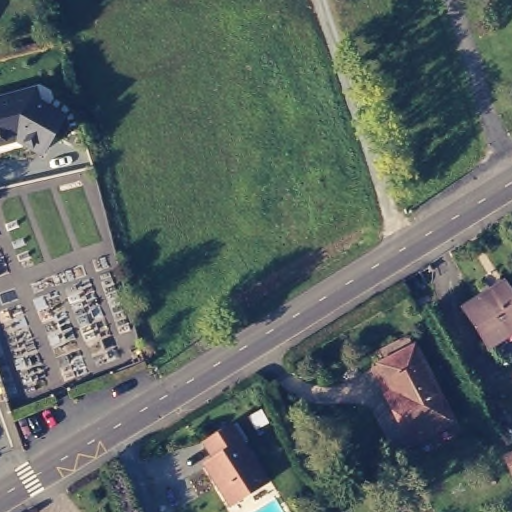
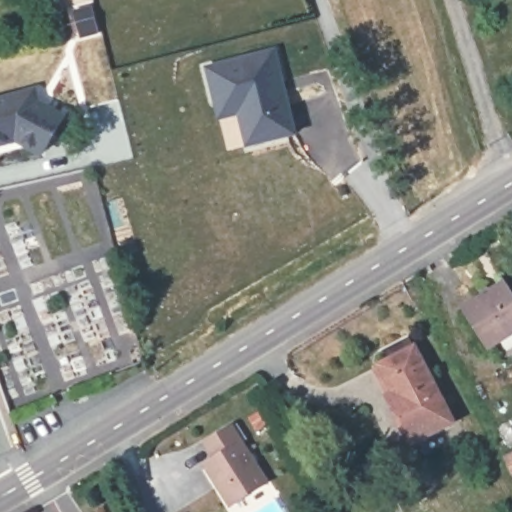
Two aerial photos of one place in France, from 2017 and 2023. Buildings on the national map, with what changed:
new [(246,149),(237,115),(218,120),(204,67),(276,49),(298,136),(246,149)]
unchanged [(62,123),(42,158),(17,144),(0,149),(0,107),(34,97),(38,109),(62,123)]
unchanged [(484,298),(481,292),(494,283),(493,280),(501,275),(512,291),(512,361),(510,362),(498,343),(494,346),(469,309),(484,298)]
unchanged [(398,404),(404,401),(386,366),(393,362),(388,352),(412,339),(418,349),(419,348),(459,423),(424,441),(421,436),(414,438),(398,404)]
unchanged [(215,467),(224,462),(216,447),(241,432),(274,485),(238,506),(215,467)]
unchanged [(512,454),(512,471),(506,457),(512,454)]

